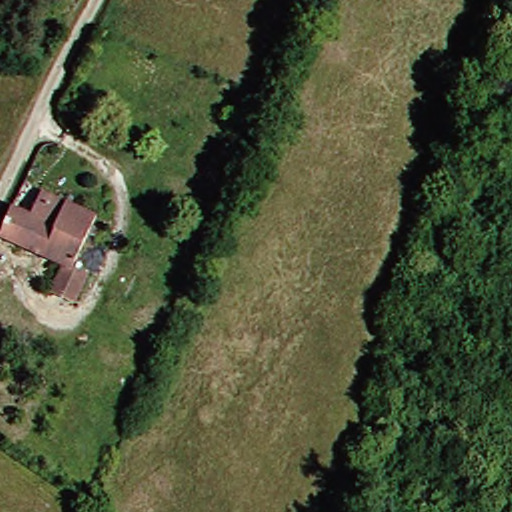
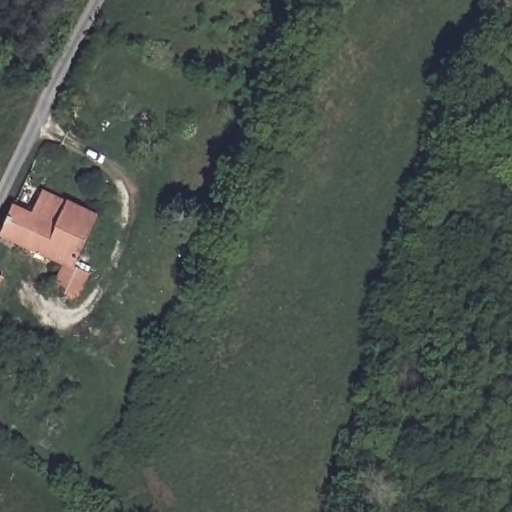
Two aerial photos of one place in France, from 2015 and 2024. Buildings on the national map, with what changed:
unchanged [(71,320),(50,309),(68,272),(1,239),(17,207),(33,217),(45,194),(97,220),(71,273),(90,283),(71,320)]
unchanged [(4,277),(0,285),(0,275),(4,277)]

